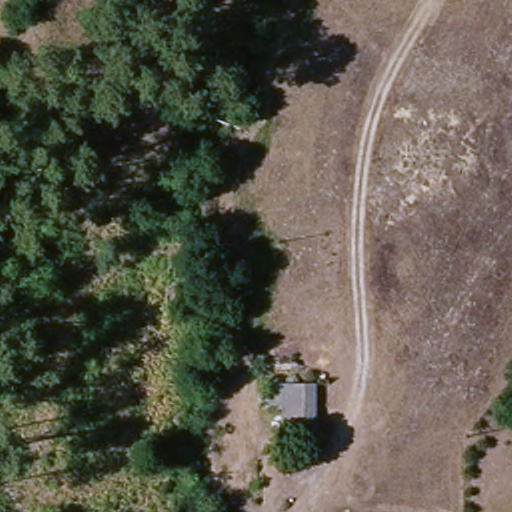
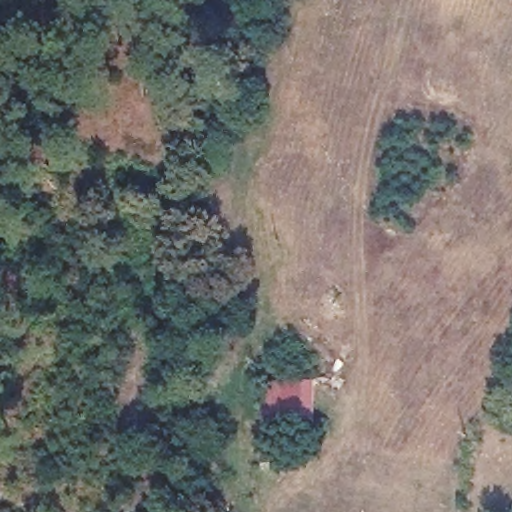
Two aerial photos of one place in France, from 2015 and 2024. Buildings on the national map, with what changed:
unchanged [(315,412),(279,414),(279,411),(265,410),(265,387),(316,384),(315,412)]

